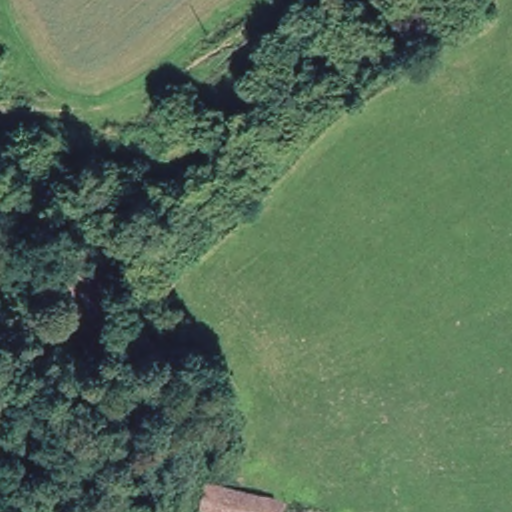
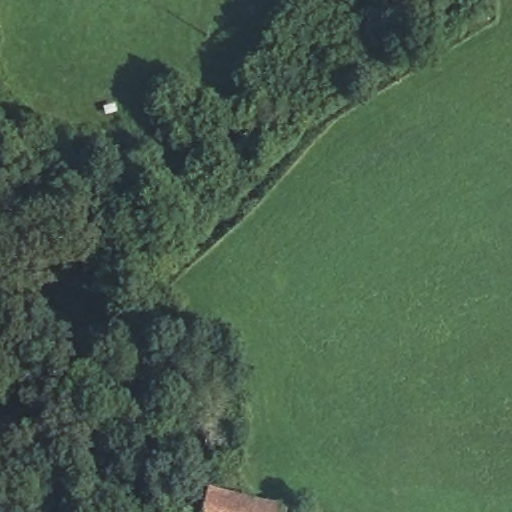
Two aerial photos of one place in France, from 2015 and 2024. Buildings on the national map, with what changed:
unchanged [(204,502),(214,502),(282,510),(282,512),(202,512),(204,502)]

